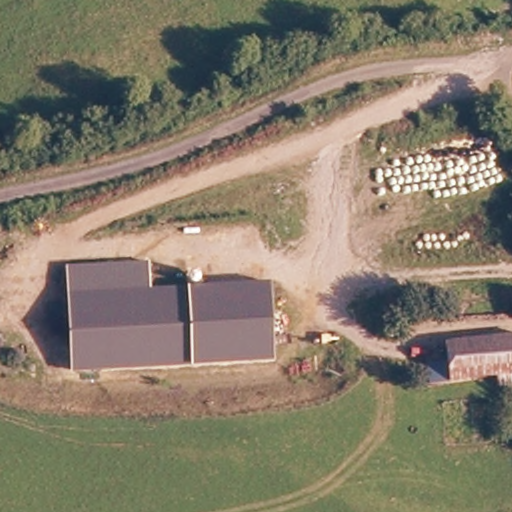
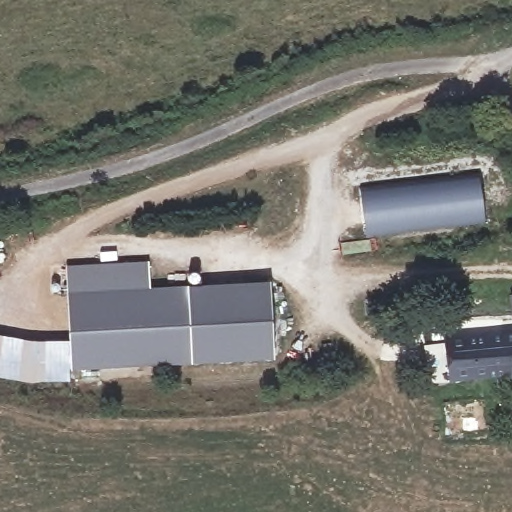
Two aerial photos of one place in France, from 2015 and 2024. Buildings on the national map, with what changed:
new [(419,175),(480,171),(486,224),(386,236),(366,240),(358,185),(419,175)]
unchanged [(272,360),(71,368),(68,263),(149,261),(150,287),(270,282),(272,360)]
unchanged [(428,359),(447,357),(446,338),(512,329),(512,364),(449,375),(430,377),(428,359)]
new [(70,341),(71,368),(71,382),(33,383),(0,378),(0,334),(32,340),(70,341)]

